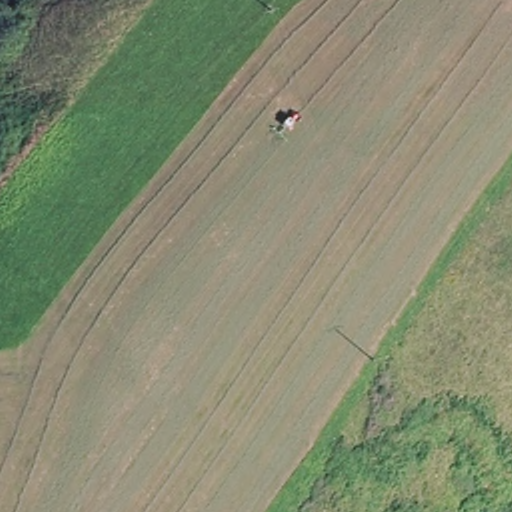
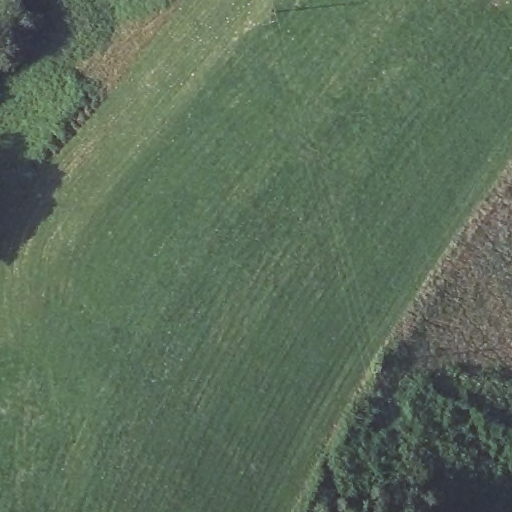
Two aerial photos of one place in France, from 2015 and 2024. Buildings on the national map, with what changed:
[]

